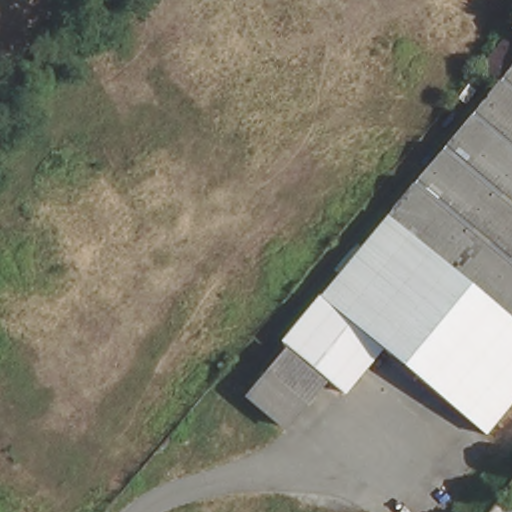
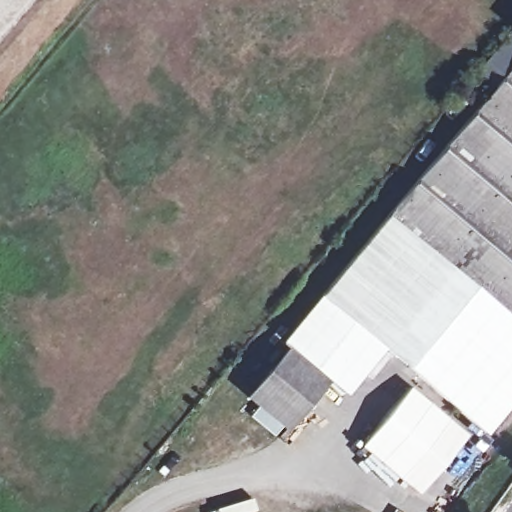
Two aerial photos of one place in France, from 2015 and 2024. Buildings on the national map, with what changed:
unchanged [(387,350),(320,293),(497,83),(480,69),(512,30),(512,408),(490,434),(387,350)]
unchanged [(278,341),(320,293),(387,350),(345,400),(329,385),(335,378),(294,343),(288,351),(278,341)]
unchanged [(288,351),(294,343),(335,378),(329,385),(289,433),(247,395),(288,351)]
new [(418,493),(361,446),(410,386),(467,434),(418,493)]

